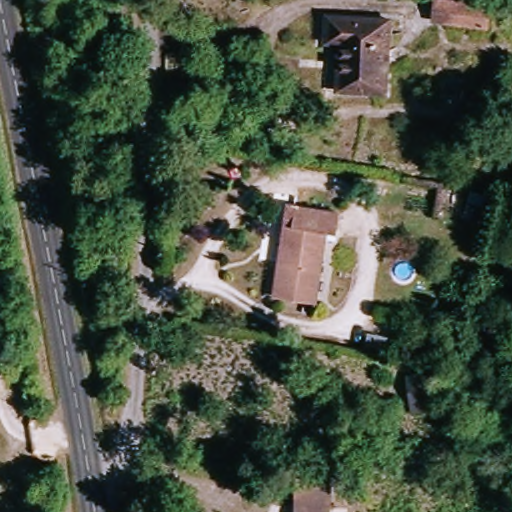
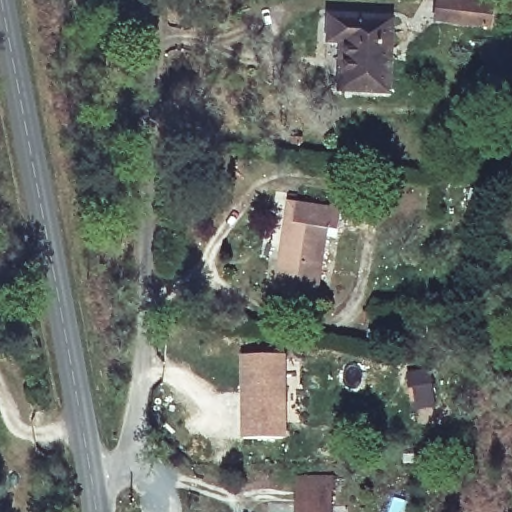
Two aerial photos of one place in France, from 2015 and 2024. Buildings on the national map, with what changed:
unchanged [(431,26),(434,0),(462,0),(495,0),(490,34),(431,26)]
unchanged [(501,4),(502,0),(512,0),(512,5),(501,4)]
unchanged [(405,19),(400,92),(356,87),(360,39),(341,36),(343,12),(405,19)]
unchanged [(512,161),(512,187),(493,182),(500,159),(512,161)]
unchanged [(341,228),(332,297),(291,293),(302,220),(304,201),(312,203),(358,207),(353,230),(341,228)]
new [(288,361),(288,443),(247,444),(247,361),(288,361)]
unchanged [(306,504),(307,488),(342,489),(342,503),(342,512),(306,512),(306,504)]

